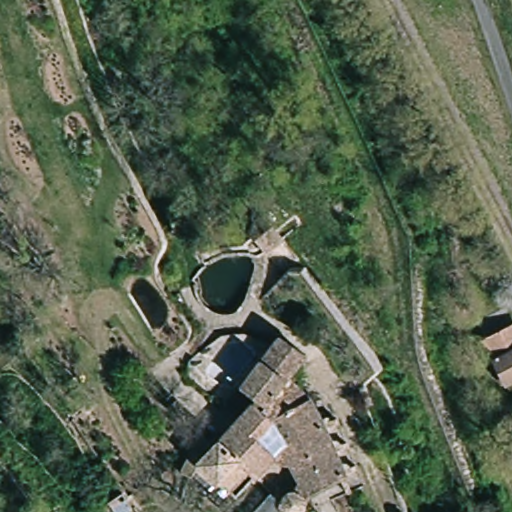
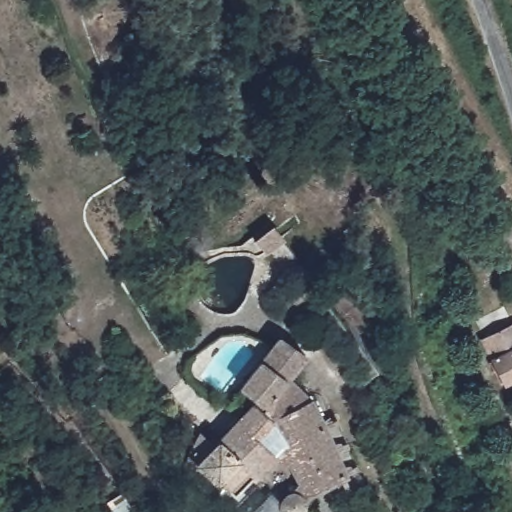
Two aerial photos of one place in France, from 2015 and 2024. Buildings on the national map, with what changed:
unchanged [(511,384),(497,357),(504,354),(492,332),(512,321),(512,383),(511,384)]
unchanged [(308,351),(297,378),(351,470),(312,487),(300,498),(299,499),(298,499),(296,500),(295,501),(292,501),(291,501),(289,501),(288,500),(287,499),(286,499),(285,498),(284,497),(284,495),(283,494),(283,492),(283,489),(284,488),(284,486),(295,469),(286,453),(284,454),(283,454),(282,454),(281,454),(274,443),(242,492),(197,468),(189,479),(177,470),(198,432),(221,444),(252,394),(243,389),(277,332),(308,351)]

